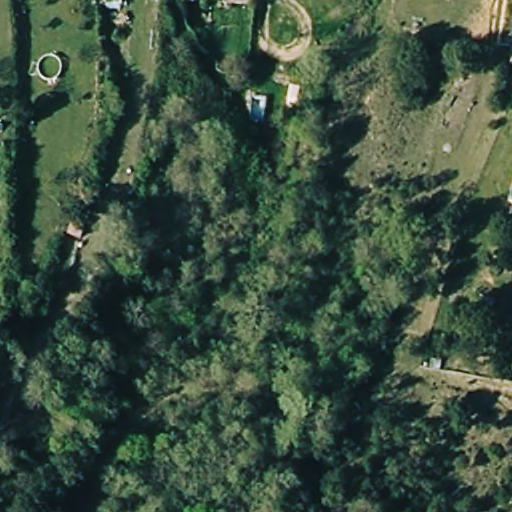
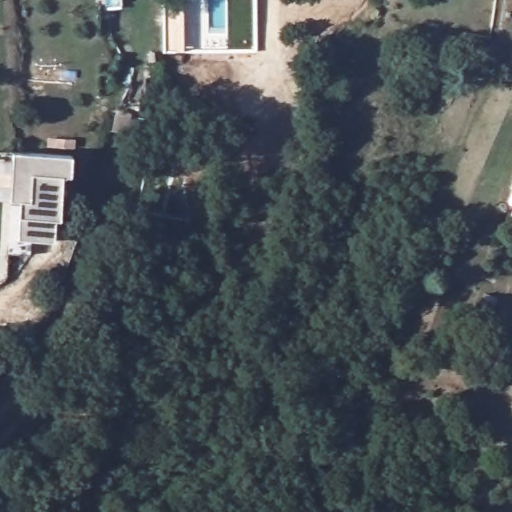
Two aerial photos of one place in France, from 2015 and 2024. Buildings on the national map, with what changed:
demolished [(221,0),(254,0),(254,1),(221,0)]
new [(70,176),(60,176),(58,220),(53,220),(52,241),(31,240),(30,255),(7,254),(10,200),(14,154),(71,156),(70,176)]
unchanged [(500,198),(512,170),(512,203),(500,198)]

